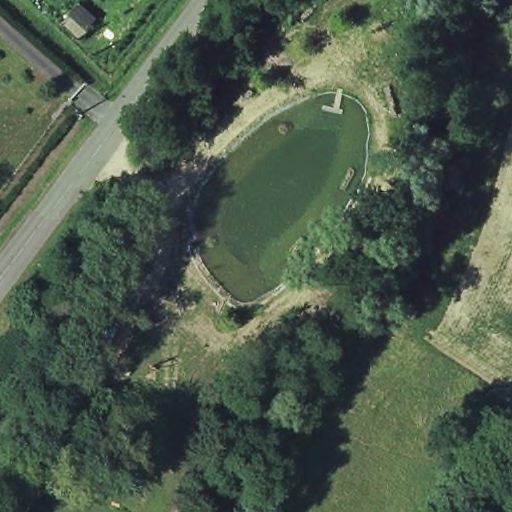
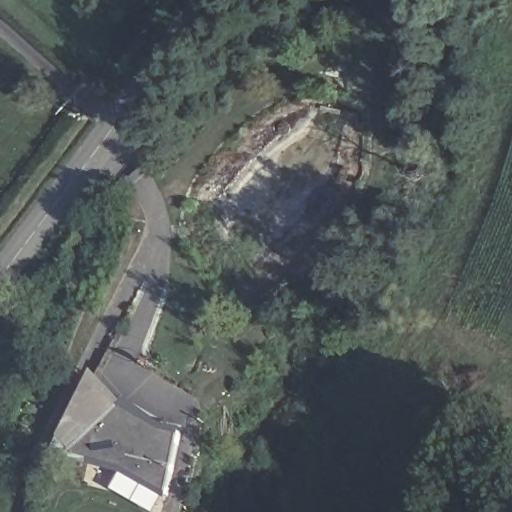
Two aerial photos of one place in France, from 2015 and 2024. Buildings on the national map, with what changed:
new [(70,463),(60,450),(101,370),(130,403),(70,463)]
new [(167,425),(190,433),(171,499),(126,470),(95,464),(70,463),(130,403),(167,425)]
new [(171,499),(163,512),(149,512),(115,496),(126,470),(171,499)]

